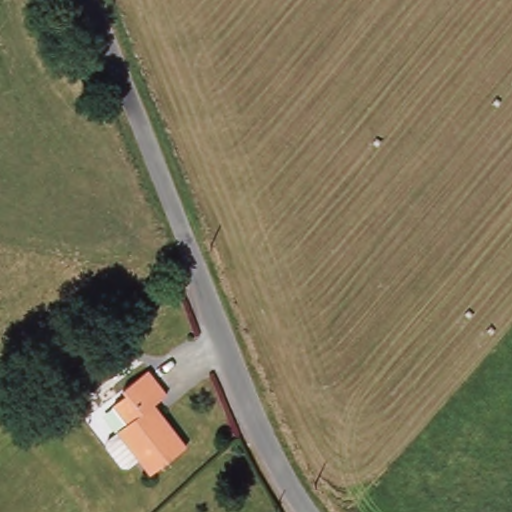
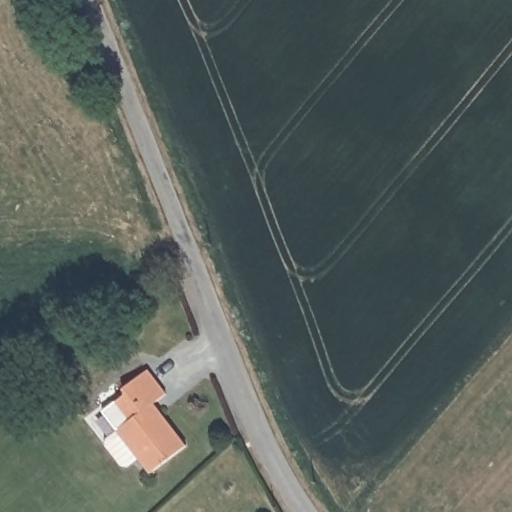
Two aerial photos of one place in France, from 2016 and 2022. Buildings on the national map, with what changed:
unchanged [(124,465),(109,444),(110,438),(121,430),(121,429),(131,421),(117,403),(130,393),(127,388),(153,369),(171,393),(158,403),(164,411),(189,445),(153,472),(141,457),(130,465),(124,465)]

